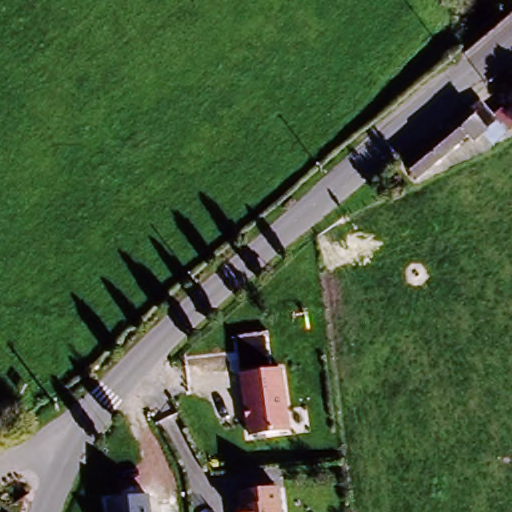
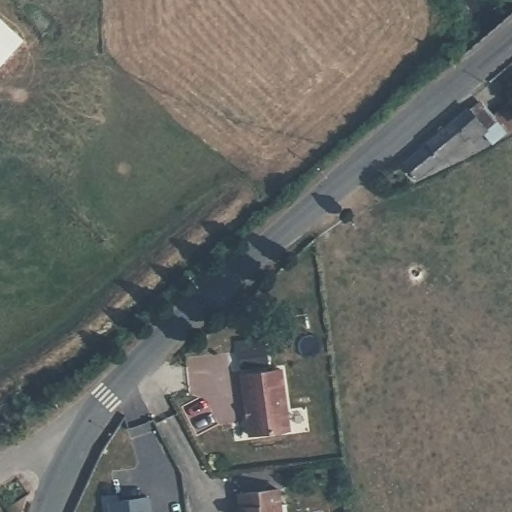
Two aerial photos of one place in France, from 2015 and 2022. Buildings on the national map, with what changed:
new [(0,67),(0,17),(25,40),(0,67)]
unchanged [(482,112),(499,131),(476,150),(471,144),(421,186),(409,172),(482,112)]
unchanged [(279,368),(288,432),(246,437),(238,372),(279,368)]
unchanged [(280,488),(282,512),(238,512),(236,492),(280,488)]
unchanged [(151,497),(152,512),(107,512),(106,500),(151,497)]

